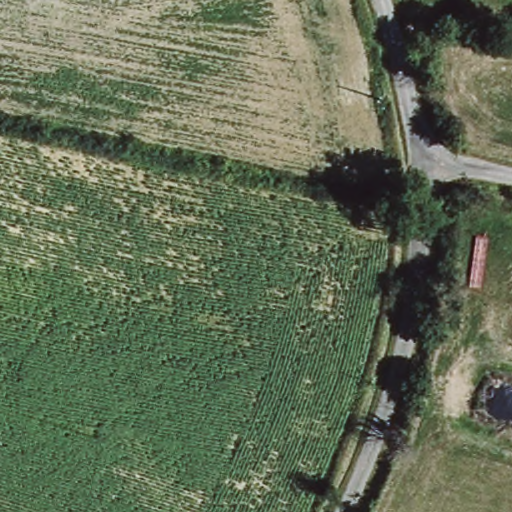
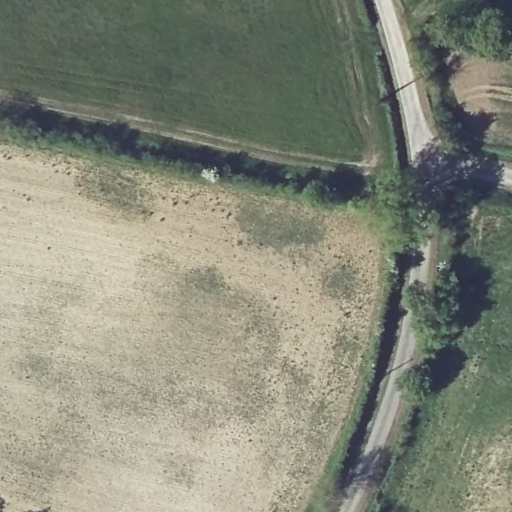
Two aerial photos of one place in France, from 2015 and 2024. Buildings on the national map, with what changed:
[]

